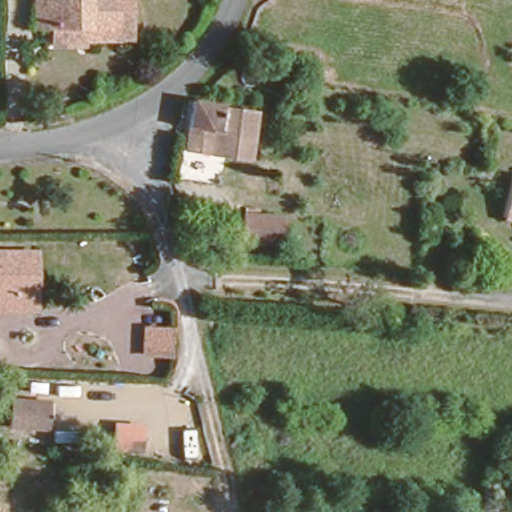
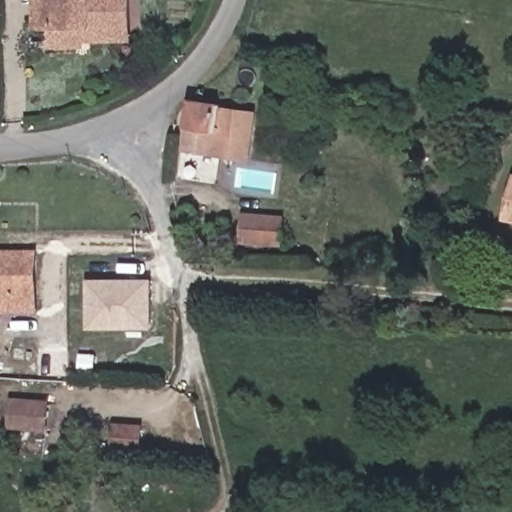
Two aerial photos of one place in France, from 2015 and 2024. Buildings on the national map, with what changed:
unchanged [(77,35),(77,44),(50,42),(49,27),(31,27),(30,4),(30,0),(126,0),(125,22),(125,36),(77,35)]
unchanged [(215,154),(215,149),(182,145),(185,125),(187,100),(220,102),(220,112),(255,116),(253,144),(251,157),(215,154)]
unchanged [(512,224),(499,222),(511,171),(512,171),(512,224)]
unchanged [(236,236),(239,212),(287,216),(285,239),(236,236)]
unchanged [(36,311),(0,310),(0,244),(37,247),(36,311)]
new [(150,278),(148,325),(87,325),(86,279),(150,278)]
demolished [(140,323),(171,325),(169,356),(142,352),(140,323)]
unchanged [(7,420),(9,397),(48,399),(47,421),(7,420)]
unchanged [(115,442),(116,427),(136,427),(135,443),(115,442)]

